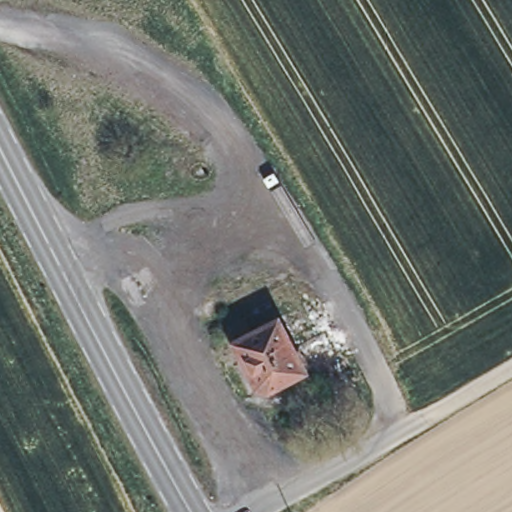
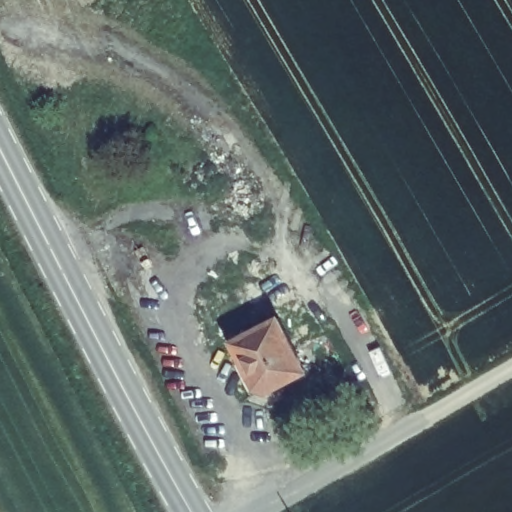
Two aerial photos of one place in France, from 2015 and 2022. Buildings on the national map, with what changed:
unchanged [(269,390),(256,386),(233,342),(276,318),(304,371),(269,390)]

